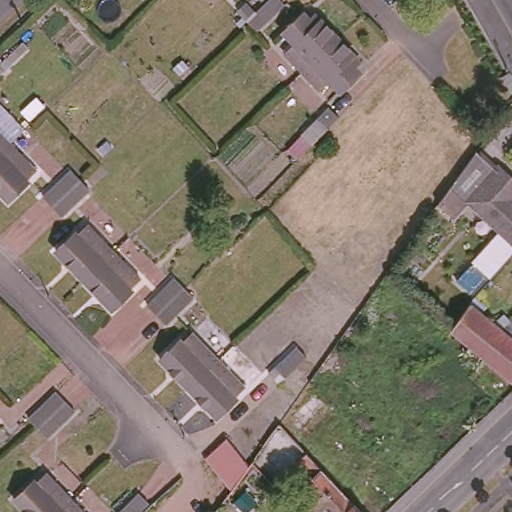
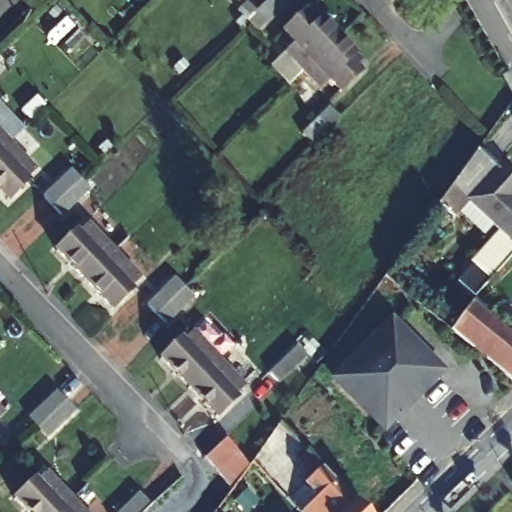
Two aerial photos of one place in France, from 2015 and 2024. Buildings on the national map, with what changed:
unchanged [(254,33),(240,21),(231,14),(243,2),(252,10),(261,0),(270,0),(279,9),(254,33)]
unchanged [(292,48),(302,39),(290,25),(308,6),(320,18),(325,14),(342,30),(306,64),(292,48)]
unchanged [(339,75),(327,87),(306,64),(342,30),(358,47),(354,53),(364,64),(347,81),(339,75)]
demolished [(325,134),(354,106),(364,115),(334,144),(325,134)]
unchanged [(297,139),(326,110),(335,120),(305,148),(297,139)]
unchanged [(9,145),(0,153),(0,136),(9,145)]
unchanged [(9,145),(35,172),(7,199),(0,190),(0,153),(9,145)]
unchanged [(497,158),(512,171),(512,232),(468,196),(497,158)]
unchanged [(83,198),(56,222),(45,210),(35,201),(64,176),(71,184),(83,198)]
unchanged [(57,251),(77,233),(79,234),(89,227),(114,252),(85,279),(57,251)]
unchanged [(114,252),(140,282),(112,308),(85,279),(114,252)]
unchanged [(189,306),(160,332),(150,320),(142,310),(169,286),(177,294),(189,306)]
unchanged [(480,301),(512,327),(512,370),(459,326),(480,301)]
new [(342,372),(340,370),(370,340),(372,342),(386,327),(437,376),(423,390),(425,392),(395,423),(393,421),(380,434),(330,385),(342,372)]
unchanged [(160,359),(173,344),(175,347),(191,333),(215,358),(185,386),(160,359)]
unchanged [(276,385),(267,375),(296,348),(305,357),(276,385)]
unchanged [(215,358),(240,384),(227,398),(228,400),(212,414),(185,386),(215,358)]
unchanged [(50,397),(59,407),(69,418),(41,446),(31,434),(22,424),(50,397)]
unchanged [(250,469),(232,494),(204,457),(225,439),(250,469)]
unchanged [(305,507),(325,491),(312,476),(320,470),(304,450),(312,443),(369,512),(310,512),(305,507)]
unchanged [(53,512),(25,512),(14,501),(47,469),(72,495),(53,512)]
unchanged [(142,491),(153,502),(142,512),(121,512),(142,491)]
unchanged [(87,512),(53,512),(72,495),(87,512)]

